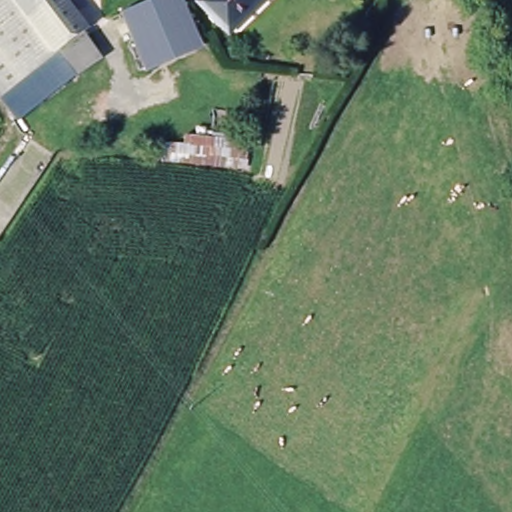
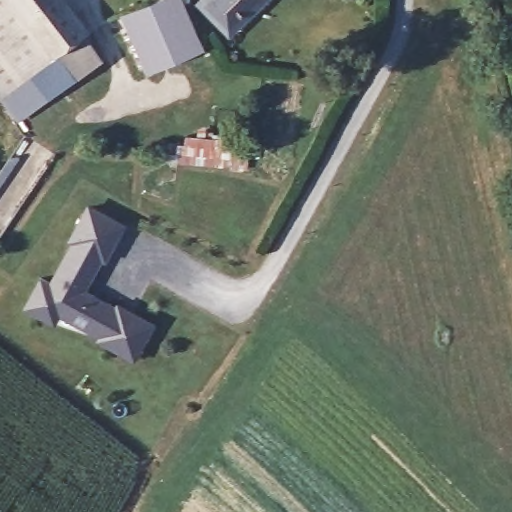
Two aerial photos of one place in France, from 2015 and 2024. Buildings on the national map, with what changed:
unchanged [(21,123),(0,95),(0,0),(66,0),(107,59),(21,123)]
unchanged [(123,20),(152,5),(150,0),(183,0),(188,15),(132,40),(123,20)]
unchanged [(271,0),(265,6),(232,35),(201,0),(271,0)]
unchanged [(202,48),(192,54),(149,75),(132,40),(188,15),(195,30),(202,48)]
new [(164,162),(162,145),(184,145),(185,136),(245,140),(246,170),(164,162)]
new [(124,225),(104,262),(99,260),(86,290),(114,306),(116,302),(152,323),(132,361),(95,342),(97,338),(57,317),(52,325),(22,308),(39,277),(49,282),(70,243),(67,241),(87,206),(124,225)]

